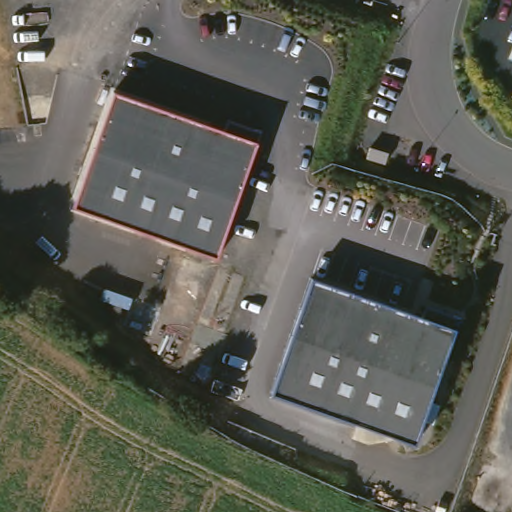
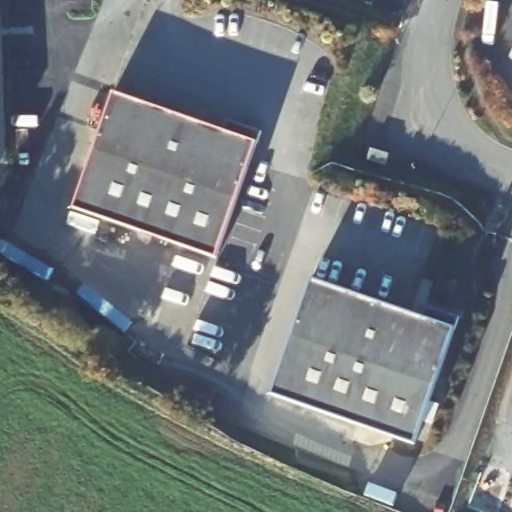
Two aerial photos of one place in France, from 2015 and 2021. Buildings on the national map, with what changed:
unchanged [(222,131),(226,119),(262,131),(257,142),(214,258),(72,208),(112,96),(222,131)]
unchanged [(272,391),(315,275),(425,315),(428,303),(462,316),(416,443),(272,391)]

